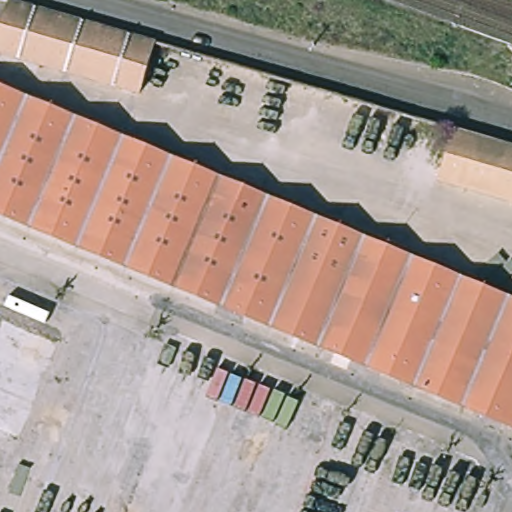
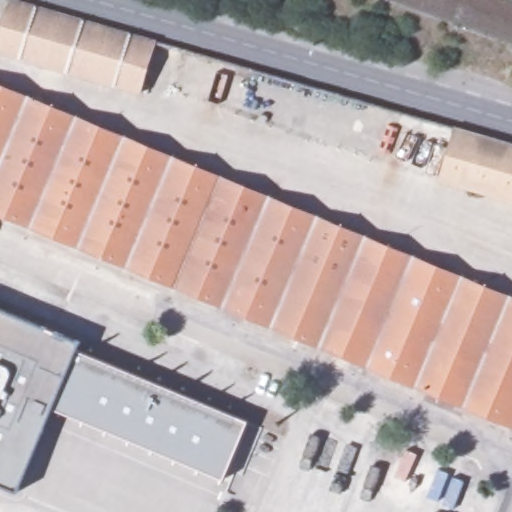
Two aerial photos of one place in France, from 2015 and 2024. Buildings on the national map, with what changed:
unchanged [(0,55),(0,29),(11,4),(157,42),(144,94),(0,55)]
unchanged [(0,218),(0,87),(512,298),(512,422),(509,428),(0,218)]
unchanged [(512,144),(512,203),(442,183),(458,129),(512,144)]
new [(0,310),(79,343),(76,351),(248,422),(223,481),(51,410),(17,494),(0,487),(0,310)]

